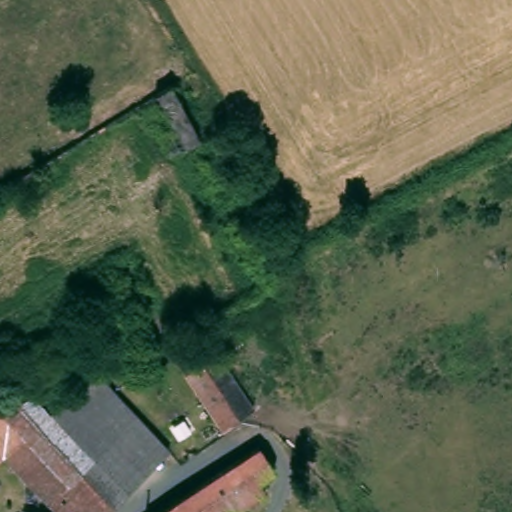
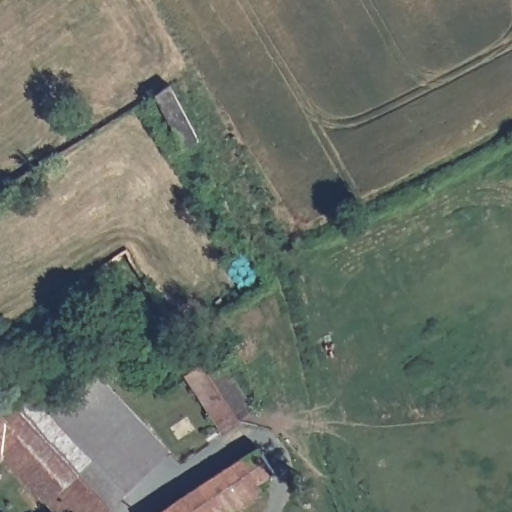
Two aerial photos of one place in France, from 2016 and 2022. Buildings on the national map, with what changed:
unchanged [(151,100),(178,86),(202,133),(175,147),(151,100)]
unchanged [(93,283),(107,307),(89,319),(73,296),(93,283)]
unchanged [(191,375),(221,355),(223,353),(234,370),(257,405),(238,417),(241,423),(221,434),(218,428),(224,426),(191,375)]
unchanged [(100,369),(171,449),(126,488),(54,410),(100,369)]
unchanged [(0,459),(0,401),(4,405),(36,388),(54,410),(126,488),(126,489),(105,508),(101,512),(62,512),(5,455),(0,459)]
unchanged [(279,468),(219,512),(159,512),(261,442),(279,468)]

